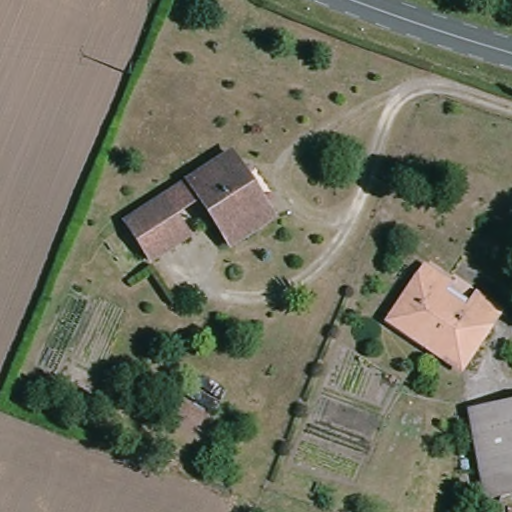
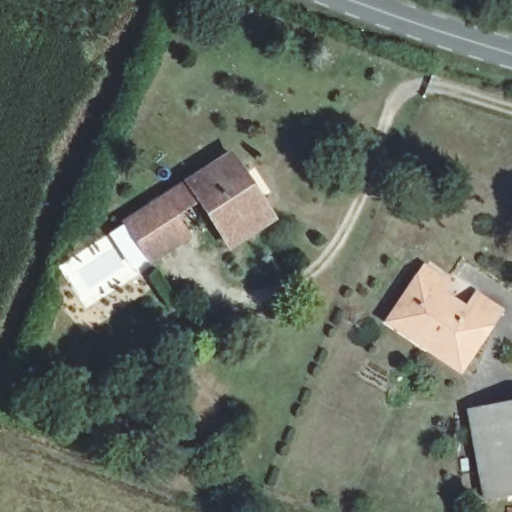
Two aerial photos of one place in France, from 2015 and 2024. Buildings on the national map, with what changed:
unchanged [(219,249),(205,225),(182,182),(222,157),(258,224),(219,249)]
unchanged [(182,182),(205,225),(163,252),(140,209),(182,182)]
unchanged [(140,209),(163,252),(140,266),(117,227),(140,209)]
unchanged [(382,335),(418,265),(442,275),(428,304),(451,316),(465,290),(496,309),(461,372),(382,335)]
unchanged [(495,413),(512,411),(512,495),(482,500),(468,417),(495,413)]

